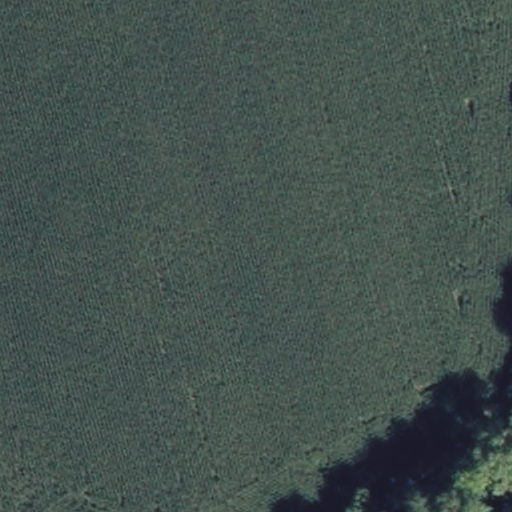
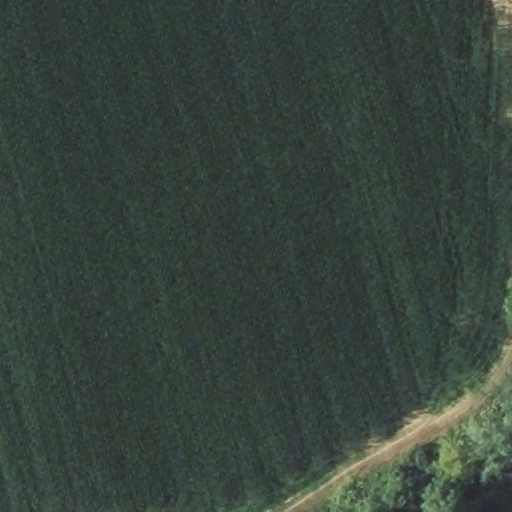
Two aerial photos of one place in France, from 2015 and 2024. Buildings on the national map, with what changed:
[]

